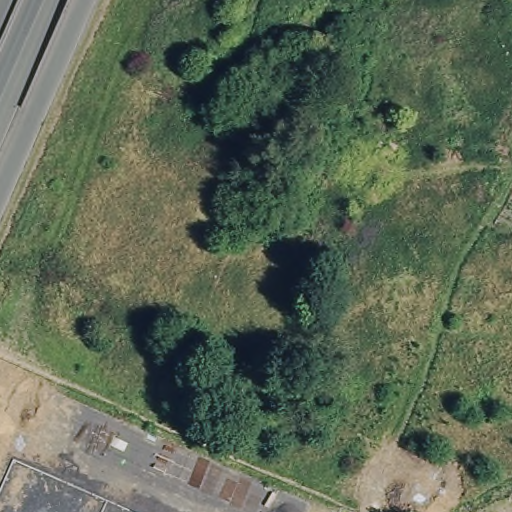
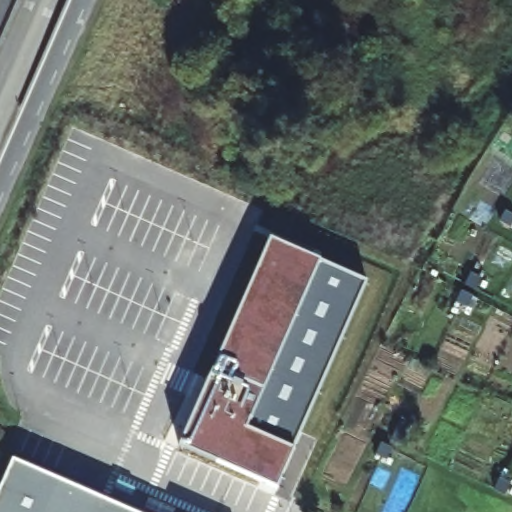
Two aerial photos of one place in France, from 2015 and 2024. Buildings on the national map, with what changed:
new [(292,450),(277,485),(181,443),(270,239),(366,281),(292,450)]
unchanged [(0,492),(14,460),(130,512),(0,512),(0,492)]

